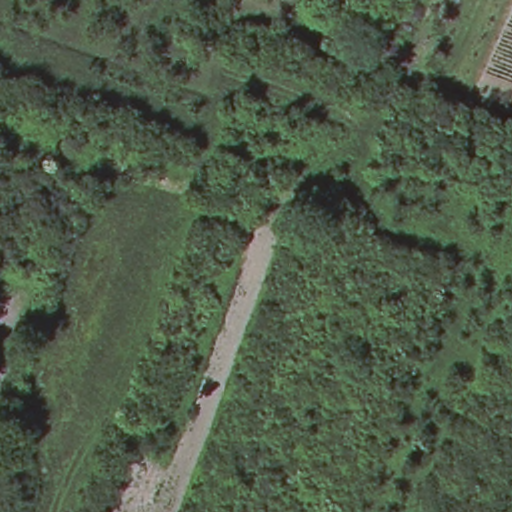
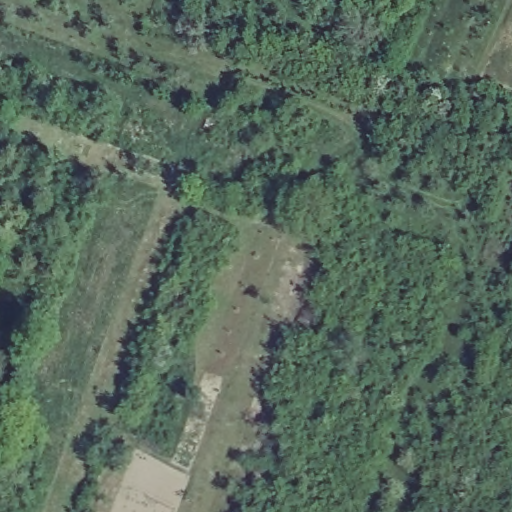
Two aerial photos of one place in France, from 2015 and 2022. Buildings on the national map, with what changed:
[]

